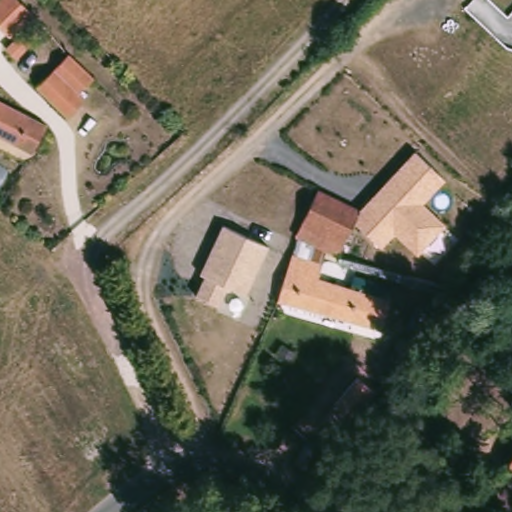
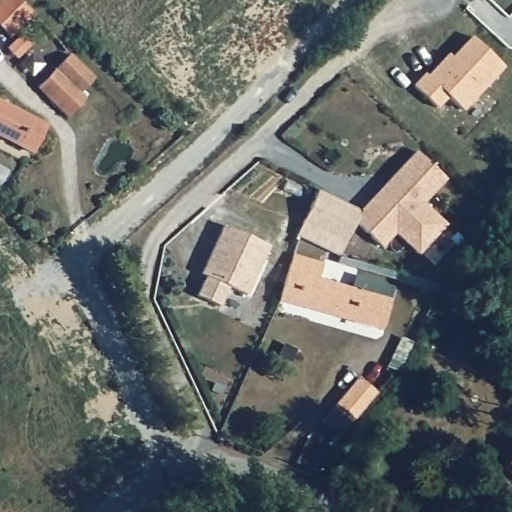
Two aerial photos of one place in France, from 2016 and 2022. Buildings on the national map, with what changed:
unchanged [(32,12),(10,35),(0,25),(0,0),(20,0),(32,12)]
new [(447,95),(436,106),(414,85),(426,73),(429,76),(449,53),(453,57),(473,35),(504,65),(462,109),(447,95)]
unchanged [(68,58),(94,83),(80,97),(85,102),(68,121),(38,92),(68,58)]
unchanged [(0,96),(53,125),(38,152),(0,132),(0,96)]
unchanged [(415,150),(444,179),(422,202),(446,224),(417,255),(394,234),(381,247),(357,222),(360,215),(356,213),(415,150)]
unchanged [(300,241),(298,240),(318,195),(360,215),(339,260),(300,241)]
unchanged [(247,295),(227,287),(219,305),(196,295),(204,275),(199,273),(222,225),(268,245),(247,295)]
unchanged [(294,260),(323,267),(319,282),(391,303),(382,335),(279,305),(294,260)]
unchanged [(381,392),(362,420),(361,420),(341,406),(361,377),(382,391),(381,392)]
unchanged [(510,469),(512,467),(512,470),(510,469)]

